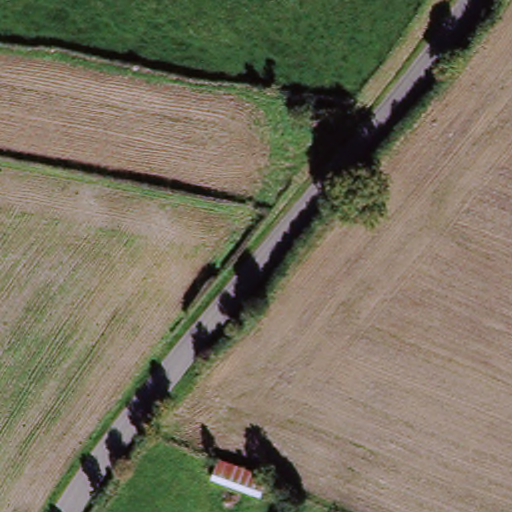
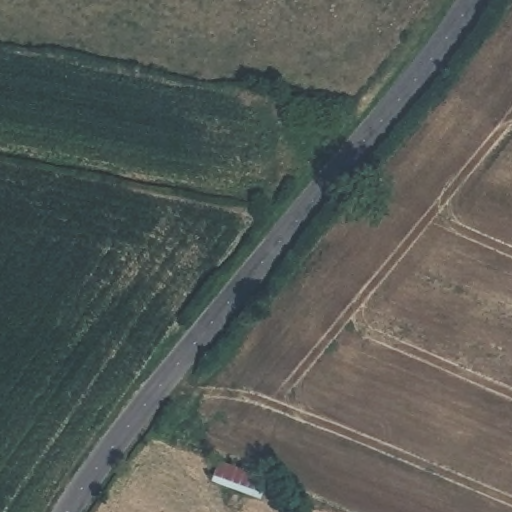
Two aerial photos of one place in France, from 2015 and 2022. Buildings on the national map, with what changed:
unchanged [(211,485),(219,465),(270,487),(262,505),(211,485)]

